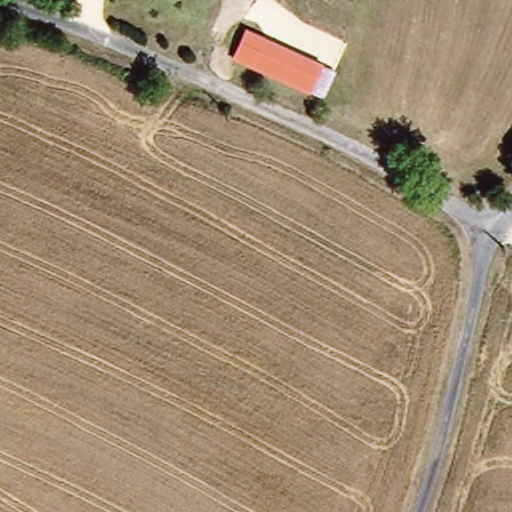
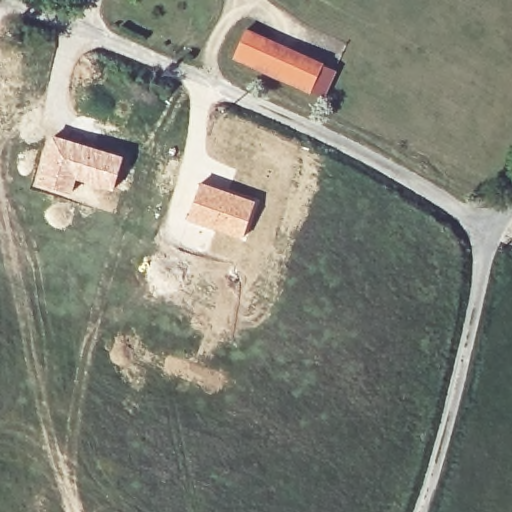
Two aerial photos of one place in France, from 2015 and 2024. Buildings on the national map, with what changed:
unchanged [(310,95),(231,60),(245,29),(324,62),(310,95)]
new [(49,132),(125,154),(113,191),(76,180),(70,197),(31,185),(49,132)]
new [(200,181),(257,199),(243,239),(186,220),(200,181)]

